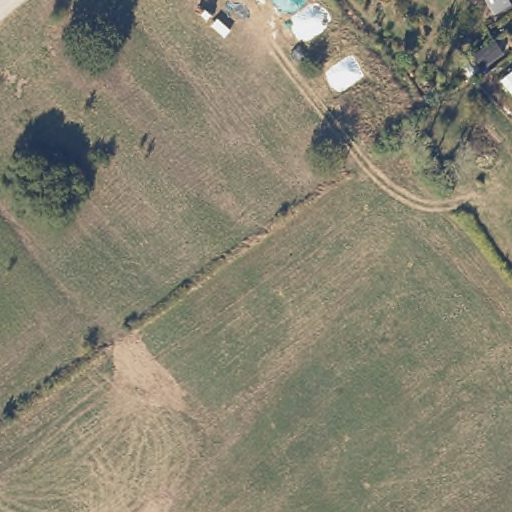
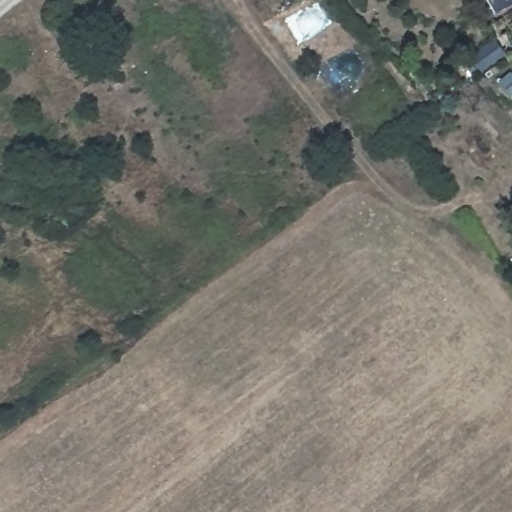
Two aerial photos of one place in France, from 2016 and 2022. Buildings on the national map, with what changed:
unchanged [(482,0),(512,0),(512,4),(491,16),(482,0)]

